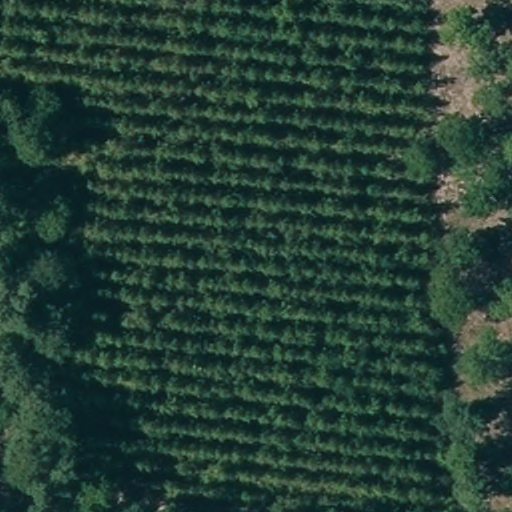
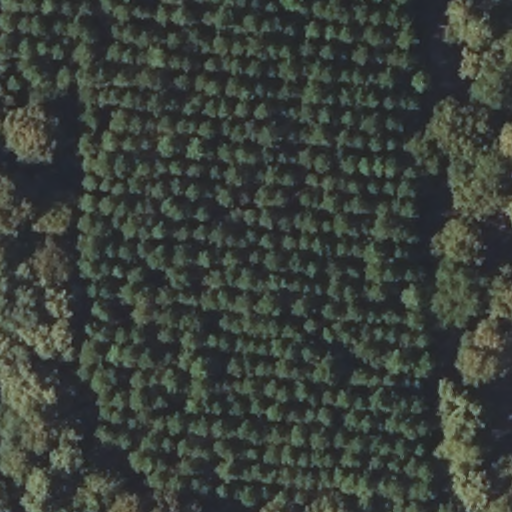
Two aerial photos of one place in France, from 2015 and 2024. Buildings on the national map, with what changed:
[]

